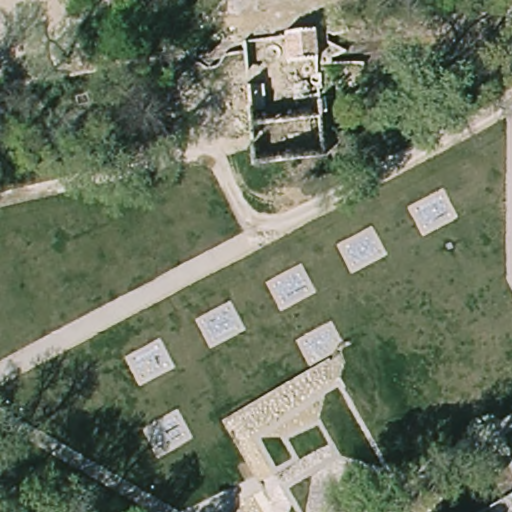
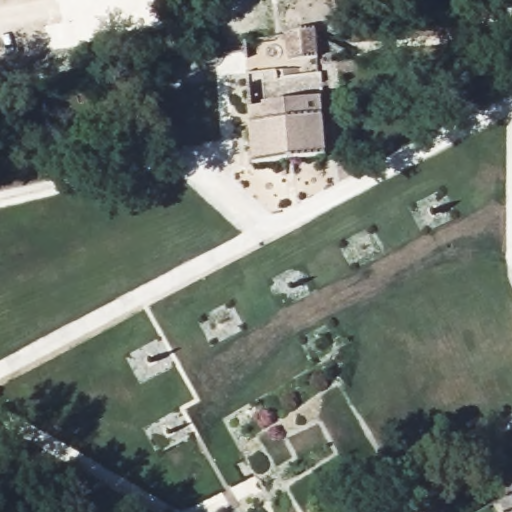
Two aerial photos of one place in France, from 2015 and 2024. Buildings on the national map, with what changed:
unchanged [(314,29),(316,57),(289,59),(286,31),(314,29)]
new [(253,163),(248,124),(248,109),(265,107),(265,104),(288,101),(290,119),(323,115),(326,154),(253,163)]

